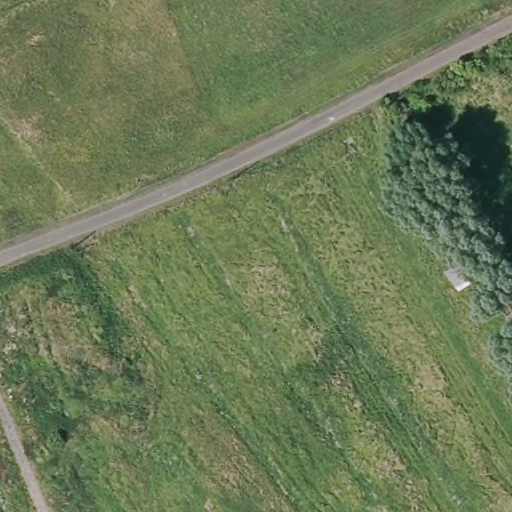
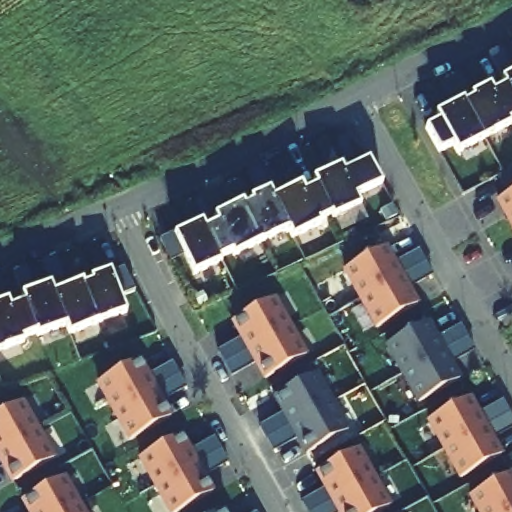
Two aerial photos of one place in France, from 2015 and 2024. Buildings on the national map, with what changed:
new [(487,54),(499,47),(512,71),(500,77),(487,54)]
new [(511,125),(460,151),(457,144),(441,152),(430,131),(444,122),(440,112),(488,87),(493,94),(506,89),(501,79),(512,73),(512,114),(507,117),(511,125)]
new [(172,235),(202,221),(207,230),(219,225),(215,216),(270,189),(275,197),(299,185),(304,191),(315,187),(312,179),(342,164),(346,172),(370,160),(384,187),(355,201),(360,211),(330,225),(327,219),(319,223),(321,228),(291,242),(287,233),(232,260),(229,256),(221,260),(223,265),(192,277),(172,235)]
new [(512,193),(512,232),(495,202),(512,193)]
new [(420,303),(374,329),(342,272),(387,247),(420,303)]
new [(40,256),(52,251),(65,283),(52,288),(49,279),(40,256)]
new [(10,267),(23,262),(32,286),(20,291),(10,267)]
new [(133,291),(119,297),(110,273),(122,268),(133,291)]
new [(82,286),(90,282),(89,280),(109,272),(125,313),(97,325),(81,286),(82,286)]
new [(80,282),(82,286),(81,286),(97,325),(67,336),(64,327),(65,327),(52,293),(80,282)]
new [(49,285),(52,293),(65,327),(64,327),(36,338),(35,335),(23,302),(22,302),(20,296),(49,285)]
new [(309,355),(262,381),(230,323),(276,298),(309,355)]
new [(7,301),(9,308),(22,303),(23,302),(35,335),(21,340),(22,343),(0,352),(0,304),(7,301)]
new [(462,380),(417,405),(384,348),(430,322),(462,380)]
new [(142,360),(173,417),(127,442),(95,386),(142,360)]
new [(350,431),(307,456),(272,401),(318,375),(350,431)]
new [(505,455),(457,481),(426,423),(472,398),(505,455)]
new [(52,461),(15,482),(0,459),(0,415),(20,403),(52,461)]
new [(183,435),(213,495),(178,512),(166,512),(138,461),(183,435)]
new [(392,506),(382,512),(334,512),(314,475),(360,449),(392,506)]
new [(467,498),(512,472),(512,512),(474,512),(467,498)]
new [(81,512),(27,512),(22,502),(63,478),(81,512)]
new [(225,510),(226,512),(222,512),(225,510)]

